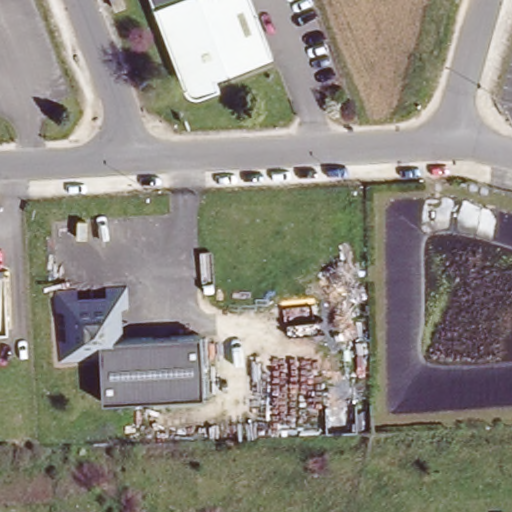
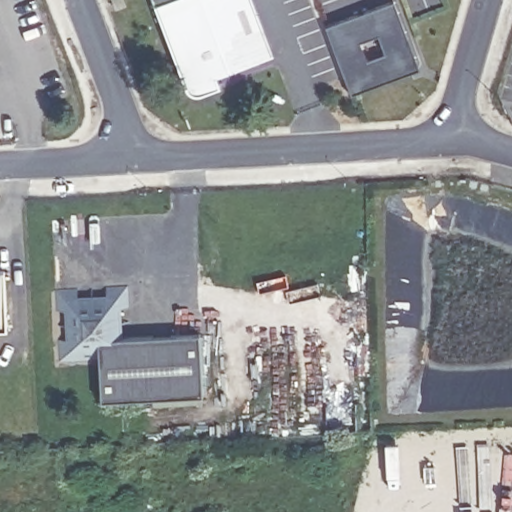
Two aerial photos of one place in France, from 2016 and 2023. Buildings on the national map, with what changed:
unchanged [(216,71),(221,81),(199,89),(198,90),(196,90),(195,90),(194,90),(193,90),(192,89),(191,89),(190,88),(189,87),(188,87),(187,86),(186,85),(186,84),(186,83),(186,82),(154,0),(253,0),(271,50),(216,71)]
new [(392,1),(414,61),(409,72),(349,95),(323,27),(392,1)]
unchanged [(0,266),(4,266),(8,346),(0,346),(0,266)]
unchanged [(77,284),(77,293),(105,292),(105,283),(128,282),(128,303),(119,303),(120,333),(200,329),(203,391),(102,397),(99,355),(60,357),(58,336),(68,335),(66,307),(56,307),(55,286),(77,284)]

